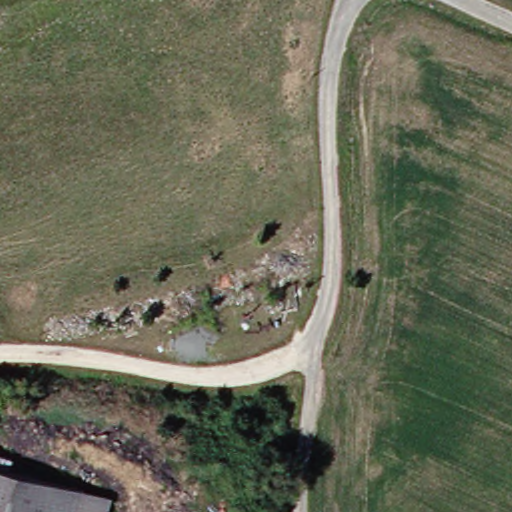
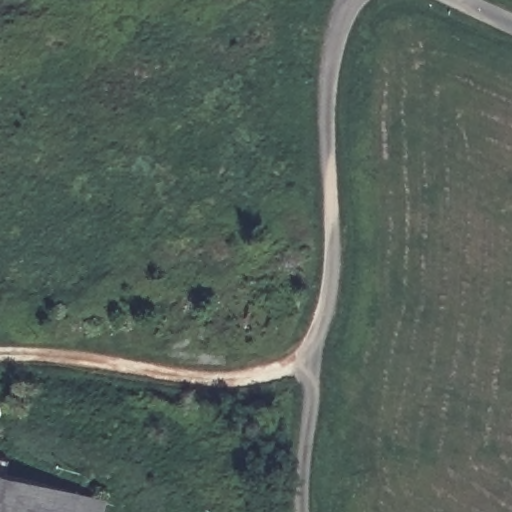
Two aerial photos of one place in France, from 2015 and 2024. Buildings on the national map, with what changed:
unchanged [(0,512),(0,460),(11,462),(8,475),(80,495),(107,502),(105,512),(0,512)]

